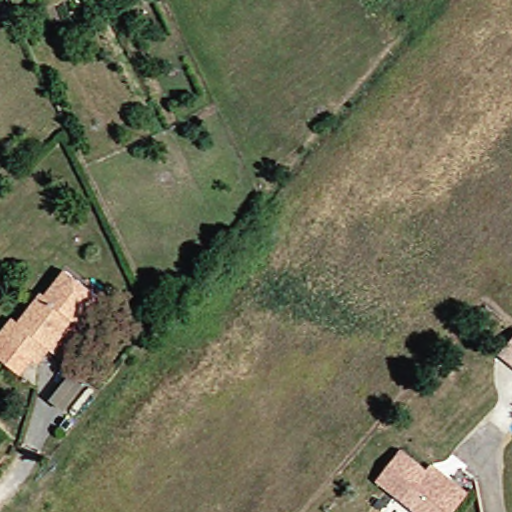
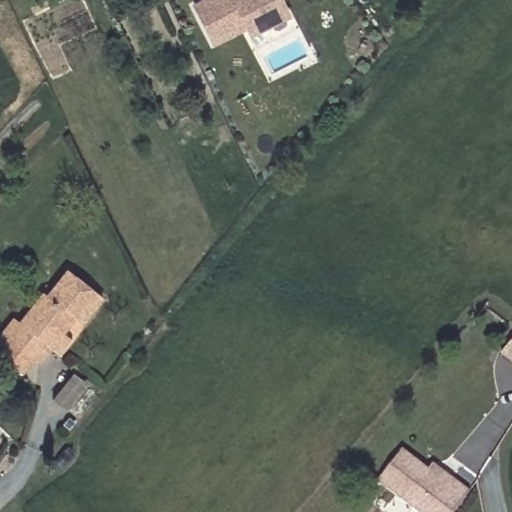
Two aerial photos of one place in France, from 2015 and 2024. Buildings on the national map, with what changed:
new [(250,40),(245,31),(212,46),(191,5),(200,0),(281,0),(291,17),(250,40)]
unchanged [(42,350),(31,364),(0,339),(0,328),(7,320),(13,324),(38,293),(42,296),(62,272),(96,300),(72,328),(65,322),(55,334),(65,343),(51,360),(42,350)]
unchanged [(503,350),(512,341),(512,359),(503,350)]
unchanged [(428,471),(433,466),(443,475),(450,480),(467,495),(453,512),(413,512),(376,479),(402,449),(428,471)]

